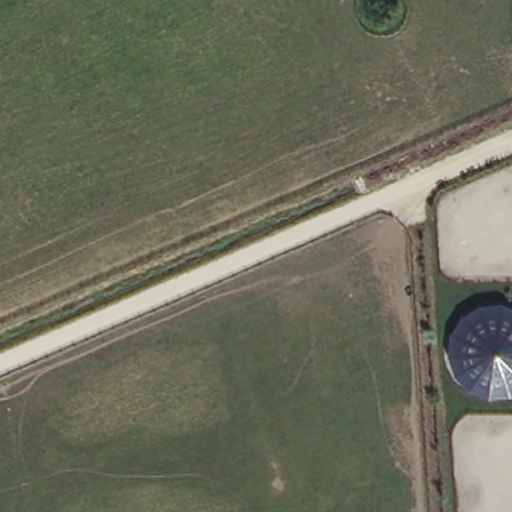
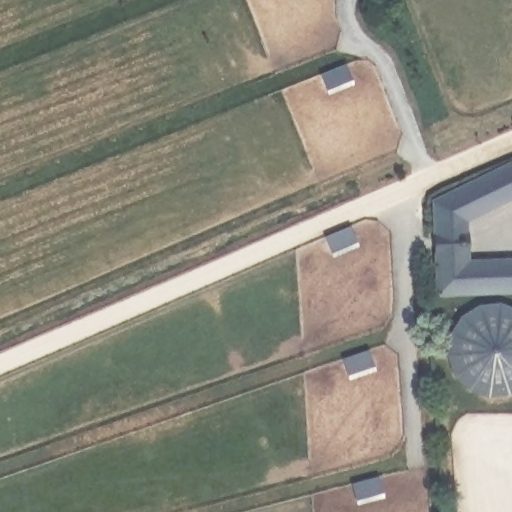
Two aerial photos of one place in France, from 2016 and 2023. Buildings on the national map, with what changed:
new [(512,163),(512,197),(468,216),(468,257),(512,256),(512,293),(434,295),(433,199),(511,161),(512,163)]
new [(351,223),(358,242),(333,253),(325,236),(351,223)]
unchanged [(511,397),(489,400),(469,391),(453,376),(447,355),(448,336),(460,317),(478,305),(501,302),(512,306),(512,396),(511,397)]
new [(368,349),(375,368),(349,379),(342,361),(368,349)]
new [(379,476),(383,495),(358,502),(353,484),(379,476)]

